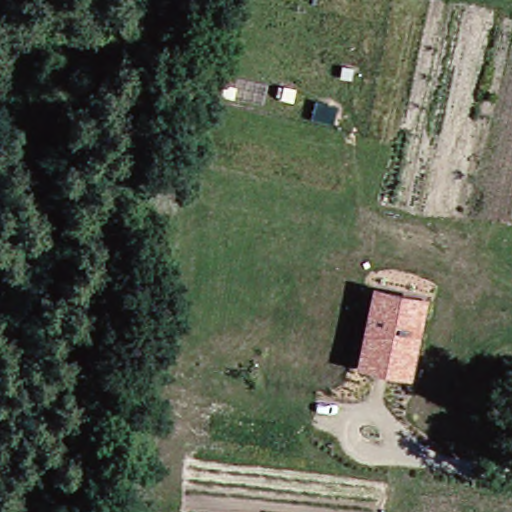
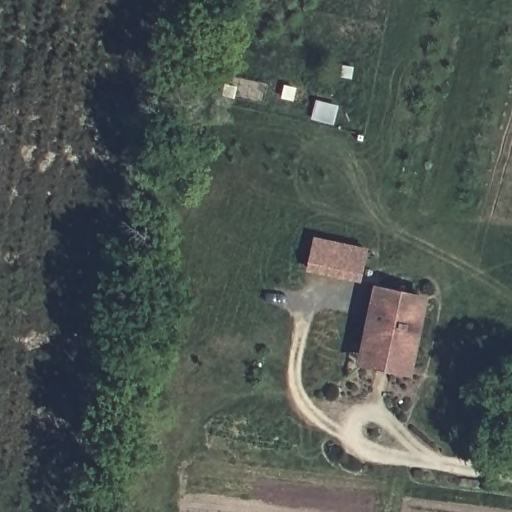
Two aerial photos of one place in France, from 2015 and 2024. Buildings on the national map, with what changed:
new [(361,277),(337,272),(312,267),(317,242),(342,247),(366,253),(361,277)]
unchanged [(427,295),(412,376),(357,365),(372,283),(427,295)]

